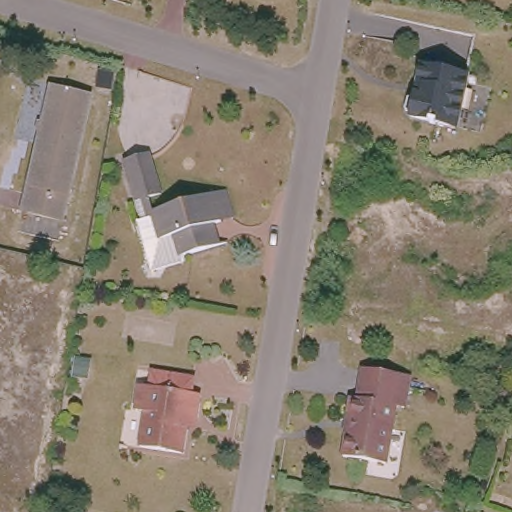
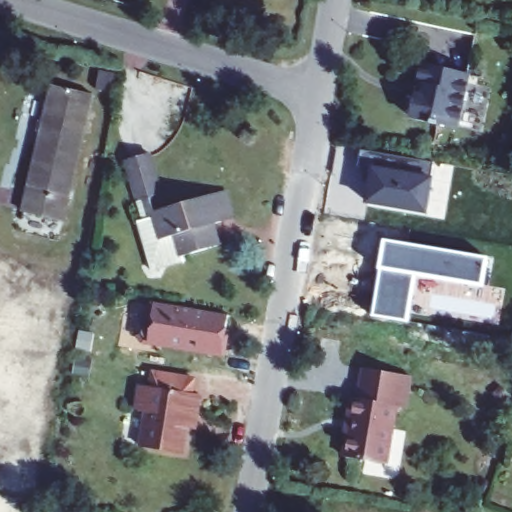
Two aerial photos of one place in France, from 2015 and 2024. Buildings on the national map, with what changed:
unchanged [(438,121),(438,124),(431,122),(432,120),(412,116),(413,113),(407,110),(410,97),(416,97),(417,93),(422,64),(428,65),(468,73),(458,125),(438,121)]
unchanged [(91,93),(61,218),(20,208),(50,82),(91,93)]
unchanged [(232,216),(220,218),(210,220),(213,242),(177,248),(179,253),(147,257),(138,208),(142,207),(132,147),(157,142),(165,182),(150,185),(153,201),(215,191),(227,189),(232,216)]
new [(427,215),(363,203),(369,170),(359,165),(362,151),(433,163),(430,176),(433,177),(427,215)]
new [(482,283),(416,273),(408,320),(372,314),(379,267),(383,239),(487,258),(482,283)]
new [(145,344),(152,302),(228,315),(220,357),(145,344)]
unchanged [(410,371),(404,403),(395,402),(385,459),(342,452),(352,391),(357,392),(362,363),(410,371)]
unchanged [(190,393),(197,395),(193,419),(185,417),(179,452),(138,445),(144,411),(135,408),(138,385),(148,386),(151,372),(192,379),(190,393)]

